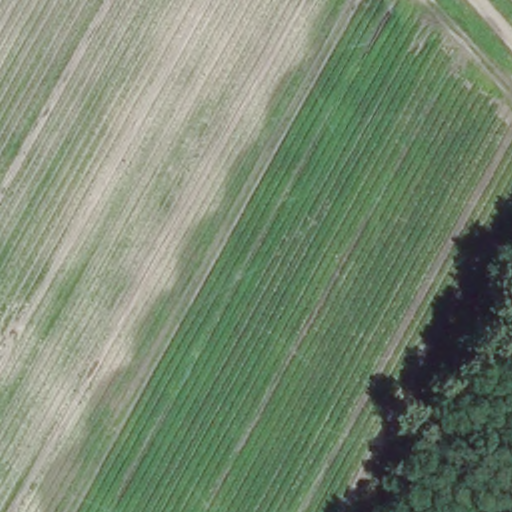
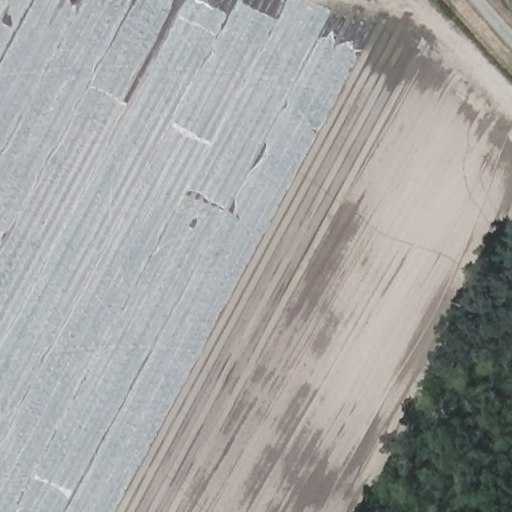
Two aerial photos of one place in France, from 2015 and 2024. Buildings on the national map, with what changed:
[]

